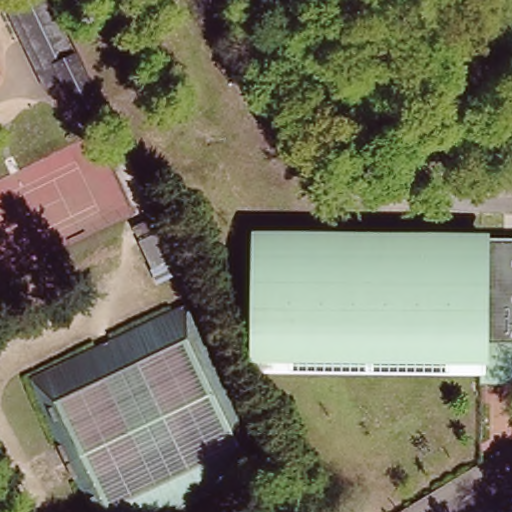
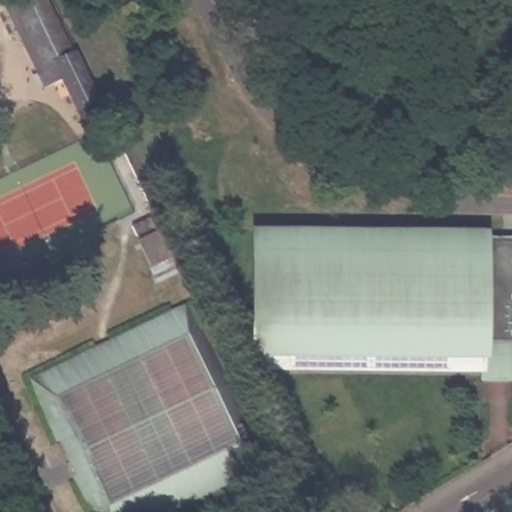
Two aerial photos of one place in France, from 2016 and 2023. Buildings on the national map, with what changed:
unchanged [(69,50),(77,47),(104,104),(80,116),(57,68),(49,71),(42,75),(7,4),(15,0),(16,0),(45,0),(69,50)]
unchanged [(132,226),(148,218),(153,229),(137,237),(132,226)]
unchanged [(154,271),(140,242),(162,231),(176,260),(154,271)]
unchanged [(490,239),(512,239),(512,384),(478,384),(478,376),(250,372),(252,362),(252,236),(490,239)]
unchanged [(207,329),(251,424),(259,465),(161,512),(86,512),(86,511),(35,403),(30,375),(150,317),(184,301),(207,329)]

